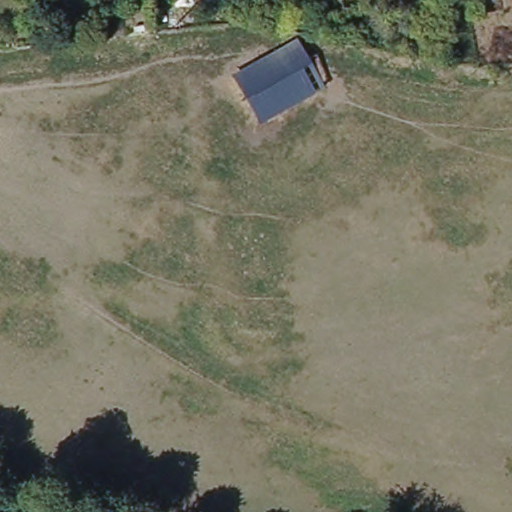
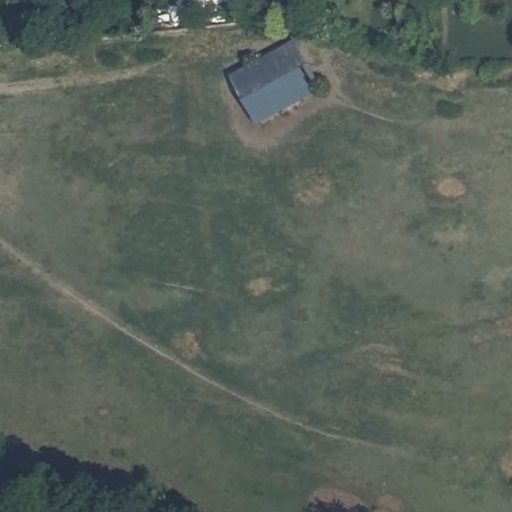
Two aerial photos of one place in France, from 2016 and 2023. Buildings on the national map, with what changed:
unchanged [(221,15),(233,14),(234,24),(222,26),(221,15)]
unchanged [(320,85),(254,121),(229,75),(298,38),(320,85)]

